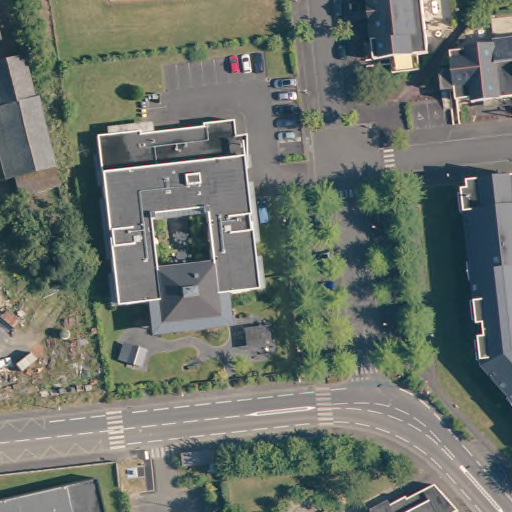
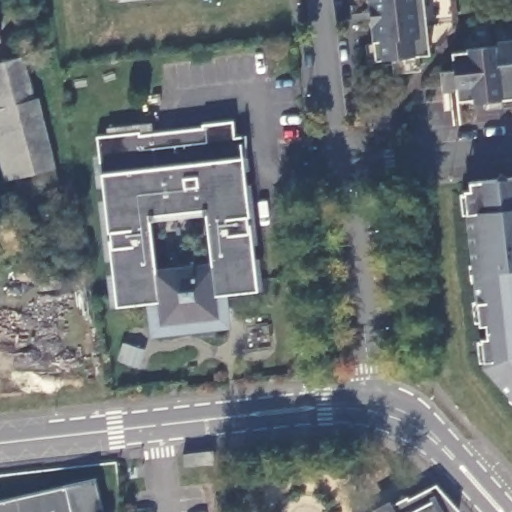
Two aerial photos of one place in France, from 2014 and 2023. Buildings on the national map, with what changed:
unchanged [(117,4),(117,0),(147,0),(117,4)]
unchanged [(421,42),(411,44),(413,59),(385,62),(384,47),(367,49),(365,29),(370,29),(367,0),(416,0),(421,42)]
unchanged [(463,48),(491,45),(491,40),(512,37),(512,102),(455,109),(452,89),(437,90),(434,69),(446,67),(445,54),(463,51),(463,48)]
unchanged [(20,196),(15,177),(7,179),(0,150),(0,64),(24,57),(35,98),(39,97),(56,166),(60,186),(20,196)]
unchanged [(139,130),(141,132),(204,125),(204,122),(233,119),(236,146),(234,146),(235,156),(244,155),(260,278),(254,288),(220,292),(222,314),(164,321),(160,301),(129,305),(119,298),(97,135),(139,130)]
unchanged [(512,179),(512,408),(506,401),(507,399),(480,368),(481,363),(476,361),(475,343),(476,342),(476,339),(477,338),(481,342),(485,341),(482,324),(480,322),(477,322),(477,325),(475,326),(473,322),(471,322),(470,305),(473,303),(471,283),(467,283),(465,266),(468,266),(462,216),(458,216),(457,197),(460,194),(461,193),(462,196),(467,196),(465,185),(492,181),(512,179)]
unchanged [(270,327),(273,350),(245,352),(243,330),(270,327)]
unchanged [(217,466),(187,470),(185,457),(216,453),(217,466)]
unchanged [(102,512),(0,512),(0,502),(94,478),(102,512)]
unchanged [(410,500),(437,485),(460,512),(383,512),(409,498),(410,500)]

